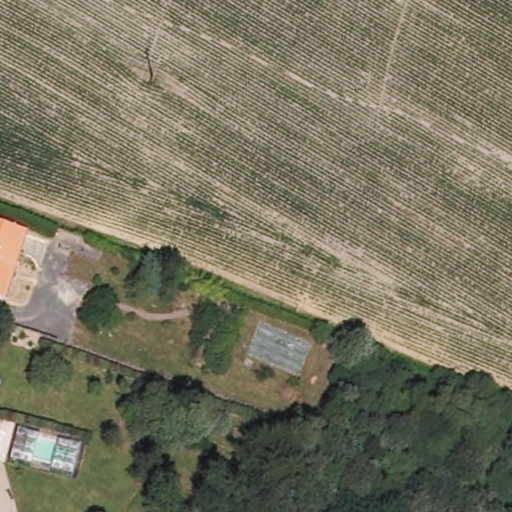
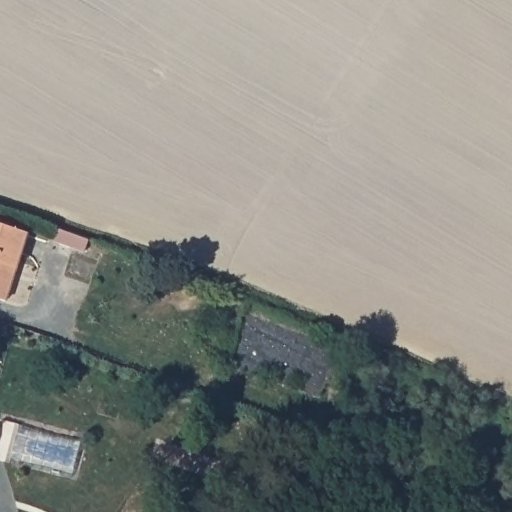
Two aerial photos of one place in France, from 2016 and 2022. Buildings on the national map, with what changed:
unchanged [(7,300),(0,298),(0,227),(26,234),(7,300)]
unchanged [(0,438),(0,428),(2,428),(0,438)]

